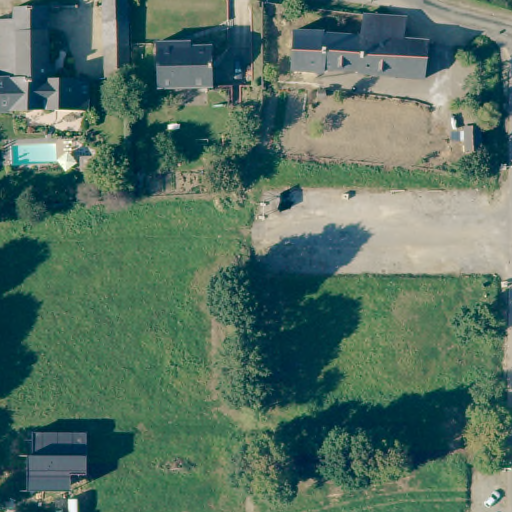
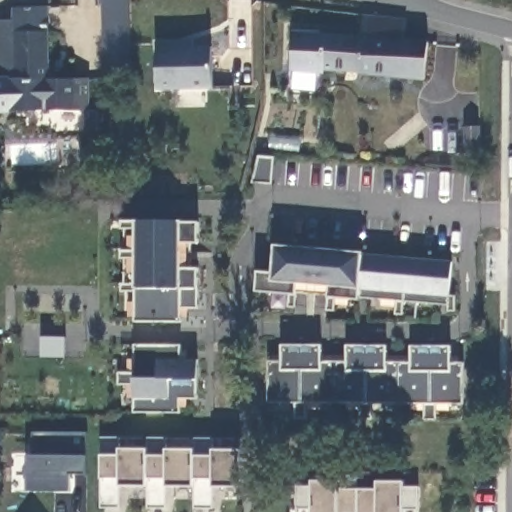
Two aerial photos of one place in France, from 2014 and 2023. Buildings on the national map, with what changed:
unchanged [(105,50),(104,0),(127,0),(129,49),(129,76),(106,77),(105,50)]
unchanged [(93,78),(92,111),(50,111),(0,111),(0,80),(0,20),(19,20),(19,8),(52,6),(53,65),(59,65),(59,79),(93,78)]
unchanged [(296,71),(298,32),(329,33),(329,35),(365,38),(369,15),(411,19),(409,40),(433,41),(430,80),(390,76),(363,74),(363,71),(327,70),(327,74),(296,71)]
unchanged [(157,89),(156,43),(178,42),(178,47),(211,46),(212,87),(157,89)]
unchanged [(466,152),(465,127),(480,127),(481,151),(466,152)]
new [(260,156),(277,158),(275,186),(255,184),(260,156)]
new [(135,322),(139,289),(134,289),(135,222),(181,222),(198,223),(197,244),(189,243),(189,269),(196,270),(197,290),(196,309),(180,308),(181,323),(135,322)]
new [(257,273),(272,274),(275,247),(361,254),(451,263),(449,298),(359,290),(358,300),(327,298),(328,293),(295,290),(295,295),(255,292),(257,273)]
new [(180,347),(180,359),(197,360),(196,400),(180,399),(180,413),(132,413),(130,385),(117,385),(117,373),(134,373),(134,346),(180,347)]
new [(280,363),(280,346),(320,347),(319,363),(346,364),(345,346),(385,348),(384,363),(409,363),(409,347),(450,348),(448,364),(463,364),(462,405),(268,403),(268,363),(280,363)]
unchanged [(34,432),(87,433),(86,475),(69,475),(69,486),(32,486),(34,432)]
new [(100,508),(105,478),(101,479),(101,455),(105,455),(101,438),(120,438),(126,449),(147,449),(148,449),(147,438),(167,438),(172,450),(194,450),(195,450),(195,439),(215,439),(220,450),(246,450),(245,487),(217,487),(212,509),(195,508),(195,488),(192,486),(170,487),(165,509),(148,508),(147,489),(145,486),(123,486),(119,508),(100,508)]
new [(311,508),(296,510),(295,487),(311,485),(311,482),(336,482),(336,490),(376,490),(375,483),(402,483),(402,488),(417,489),(417,510),(402,510),(402,512),(311,512),(311,508)]

